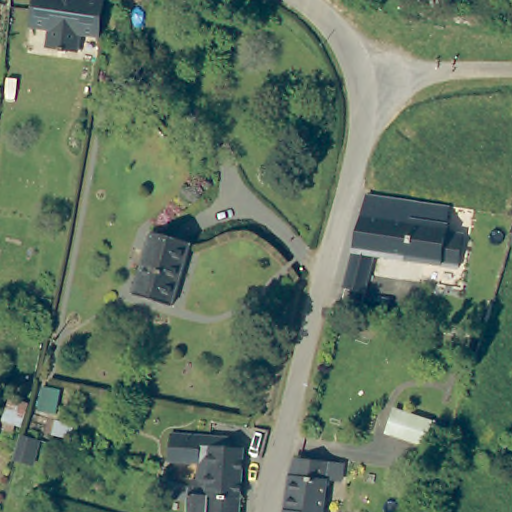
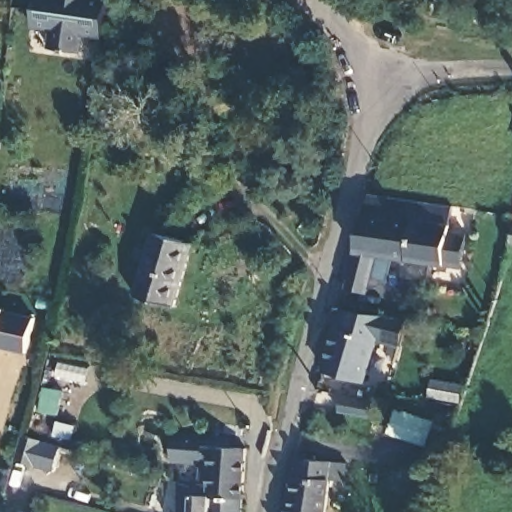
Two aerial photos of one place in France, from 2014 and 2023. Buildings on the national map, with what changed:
unchanged [(68,50),(69,36),(49,34),(54,0),(102,0),(97,52),(68,50)]
unchanged [(447,235),(464,237),(460,270),(375,257),(366,294),(346,290),(364,216),(369,197),(370,197),(408,202),(450,208),(447,235)]
unchanged [(194,245),(174,307),(136,293),(155,232),(194,245)]
unchanged [(512,244),(510,244),(512,235),(512,244)]
new [(4,309),(4,311),(34,318),(27,352),(0,346),(0,308),(4,309)]
new [(339,310),(407,320),(399,347),(377,343),(365,382),(322,371),(335,325),(339,310)]
unchanged [(393,437),(401,413),(439,426),(431,449),(393,437)]
unchanged [(14,458),(21,436),(40,441),(33,465),(14,458)]
unchanged [(205,498),(197,497),(185,494),(185,486),(192,486),(193,466),(182,466),(163,464),(164,437),(194,439),(220,441),(223,441),(223,450),(237,451),(233,512),(203,512),(205,498)]
unchanged [(512,444),(512,465),(500,462),(506,442),(512,444)]
unchanged [(286,511),(291,476),(297,458),(330,462),(350,466),(349,485),(328,482),(323,512),(286,512),(286,511)]
unchanged [(185,494),(197,497),(205,498),(203,512),(183,512),(183,510),(162,501),(160,500),(160,498),(152,495),(159,481),(163,482),(167,485),(175,489),(185,494)]

